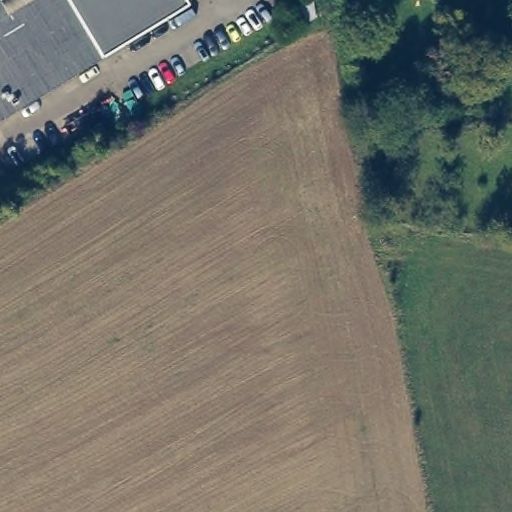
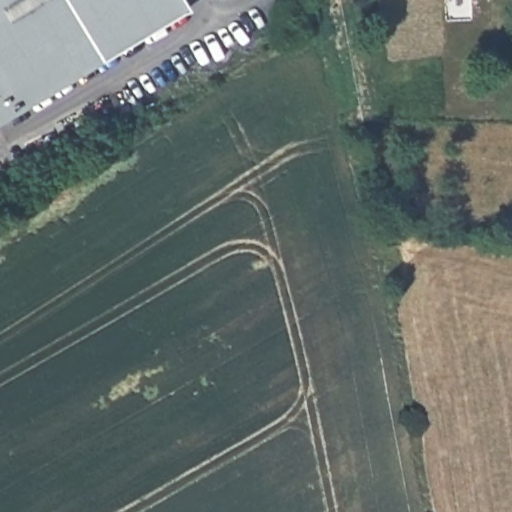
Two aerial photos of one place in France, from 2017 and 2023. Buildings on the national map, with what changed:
unchanged [(190,5),(123,48),(92,67),(0,125),(0,0),(188,0),(190,5)]

